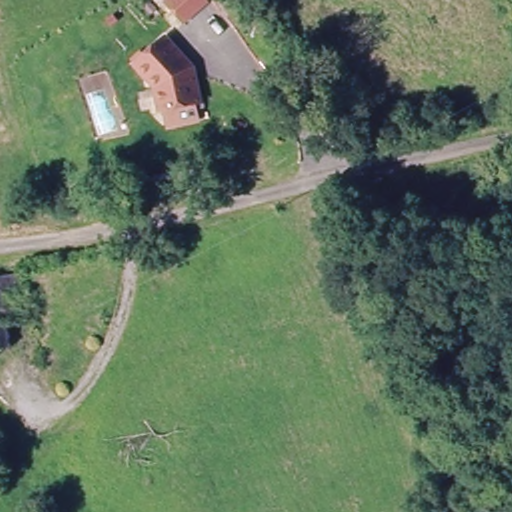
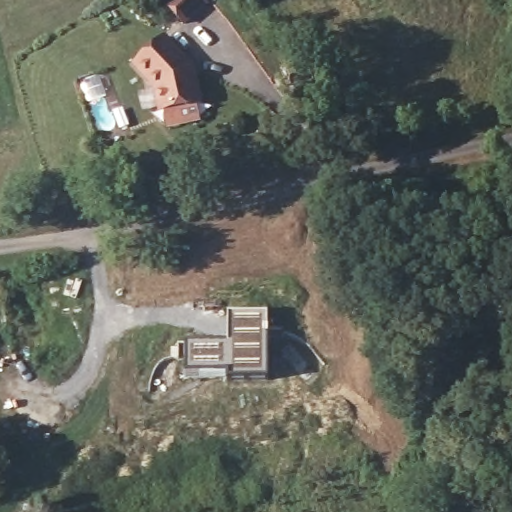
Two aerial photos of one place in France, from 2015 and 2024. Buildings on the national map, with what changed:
unchanged [(168,0),(206,0),(184,19),(168,0)]
unchanged [(165,116),(161,100),(159,101),(154,76),(134,54),(165,28),(191,59),(198,93),(195,94),(198,109),(165,116)]
unchanged [(4,325),(0,325),(0,278),(17,276),(20,324),(4,325)]
new [(227,379),(227,371),(186,371),(186,342),(227,342),(227,312),(270,312),(270,378),(227,379)]

